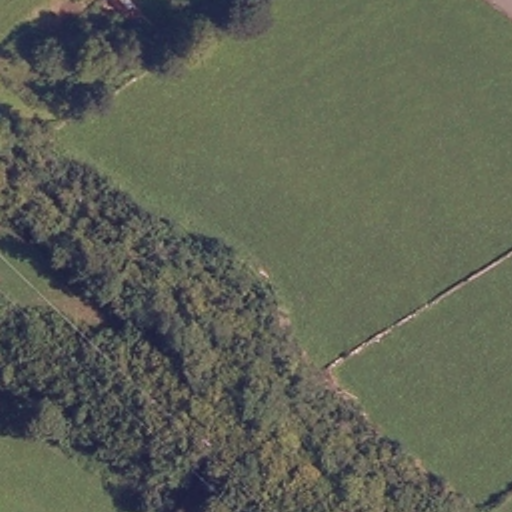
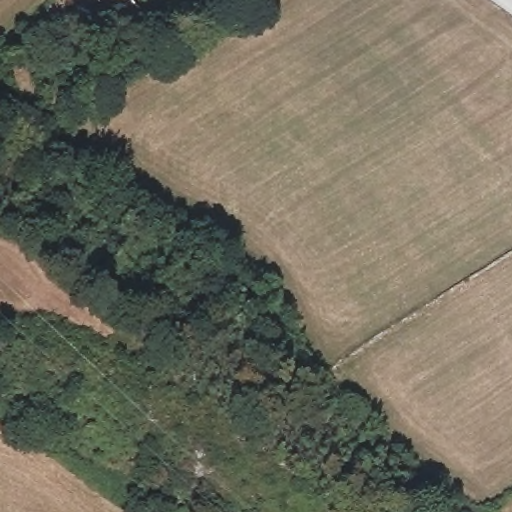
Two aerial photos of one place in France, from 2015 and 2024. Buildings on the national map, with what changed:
unchanged [(171,42),(160,52),(115,0),(134,0),(171,42)]

